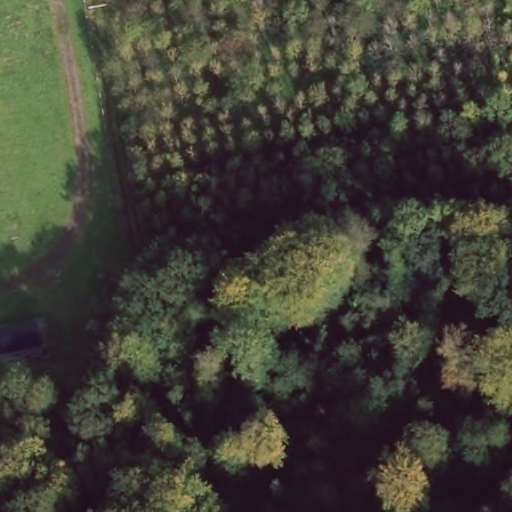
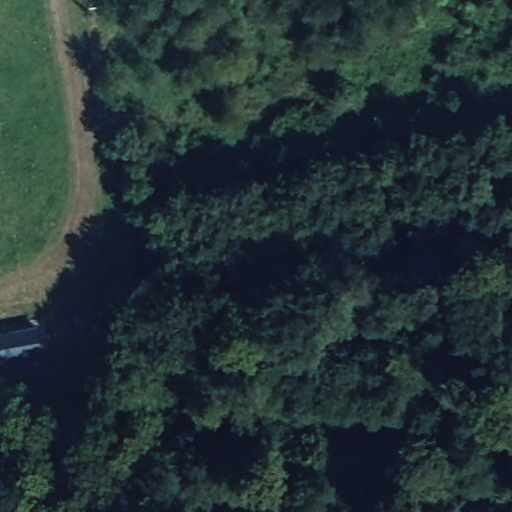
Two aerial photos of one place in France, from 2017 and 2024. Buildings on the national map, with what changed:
unchanged [(41,327),(45,350),(0,358),(0,334),(41,327)]

